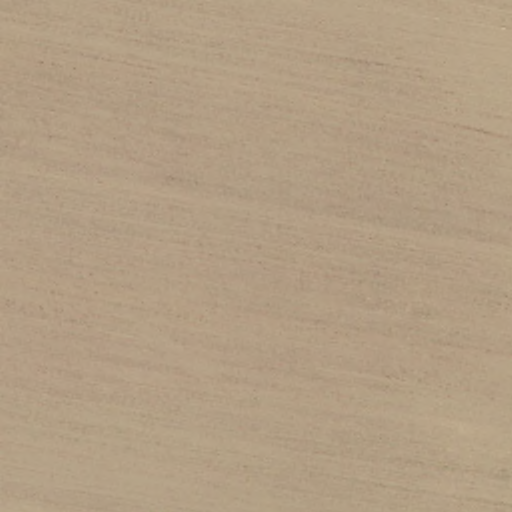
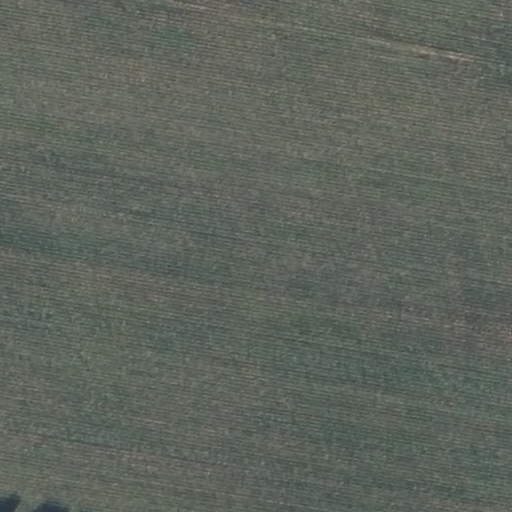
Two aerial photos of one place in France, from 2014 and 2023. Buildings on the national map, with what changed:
[]

